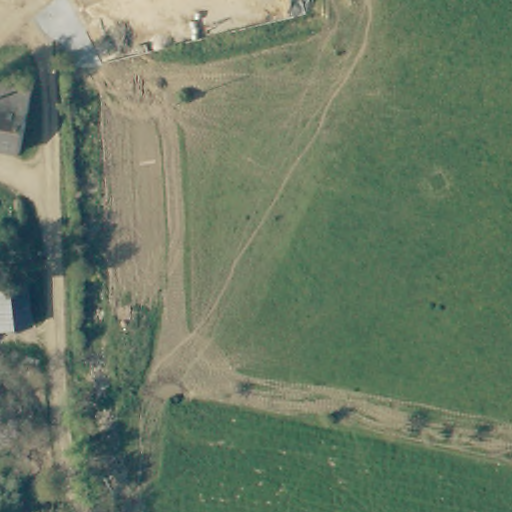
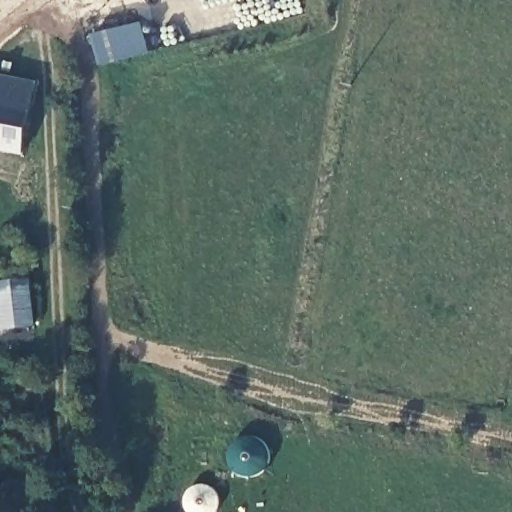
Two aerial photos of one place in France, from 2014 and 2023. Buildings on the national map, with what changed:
new [(101,65),(94,35),(144,23),(151,54),(101,65)]
unchanged [(34,85),(20,151),(0,147),(0,78),(34,85)]
unchanged [(30,273),(32,328),(0,331),(0,275),(30,273)]

